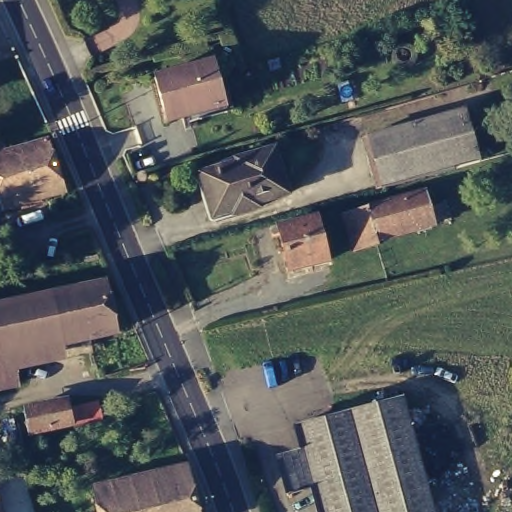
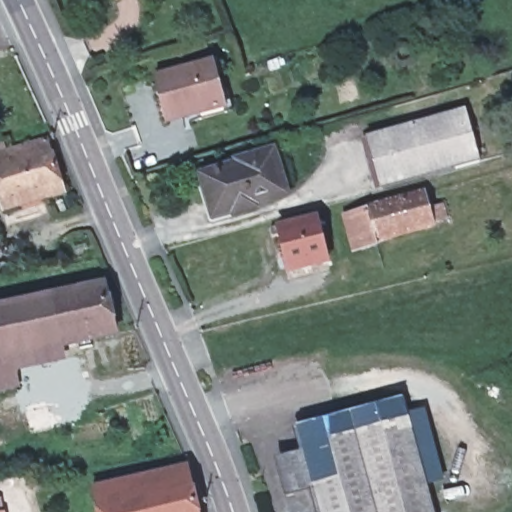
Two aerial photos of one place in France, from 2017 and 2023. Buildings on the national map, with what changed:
unchanged [(200,120),(198,114),(167,123),(155,78),(213,63),(225,102),(227,112),(200,120)]
unchanged [(480,157),(383,184),(368,132),(465,104),(480,157)]
unchanged [(60,191),(0,210),(0,152),(13,149),(45,140),(60,191)]
unchanged [(289,186),(270,192),(257,195),(260,201),(241,207),(240,203),(220,209),(209,171),(246,160),(245,158),(277,148),(289,186)]
unchanged [(376,239),(377,244),(354,251),(345,217),(425,194),(430,210),(440,207),(443,218),(433,221),(433,223),(376,239)]
unchanged [(327,256),(290,265),(281,229),(273,231),(271,223),(280,220),(280,223),(317,214),(327,256)]
unchanged [(82,346),(81,341),(12,356),(0,359),(0,307),(105,284),(117,333),(90,339),(91,344),(82,346)]
unchanged [(18,383),(0,387),(0,359),(12,356),(18,383)]
unchanged [(316,512),(310,489),(300,450),(293,426),(372,405),(399,398),(429,512),(316,512)]
unchanged [(26,416),(68,408),(70,414),(98,408),(102,425),(72,430),(30,438),(26,416)]
unchanged [(310,489),(283,496),(273,457),(300,450),(310,489)]
unchanged [(99,512),(92,483),(189,461),(201,512),(99,512)]

